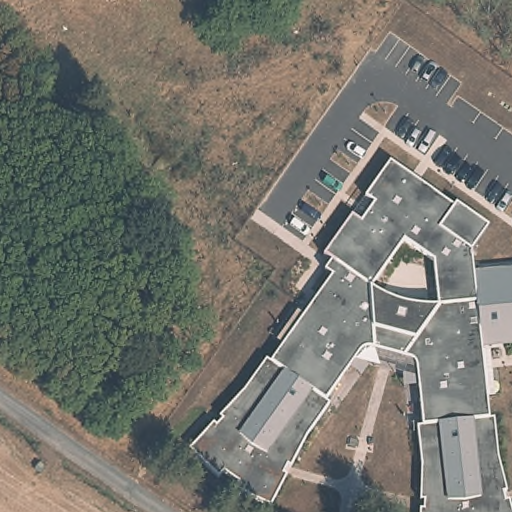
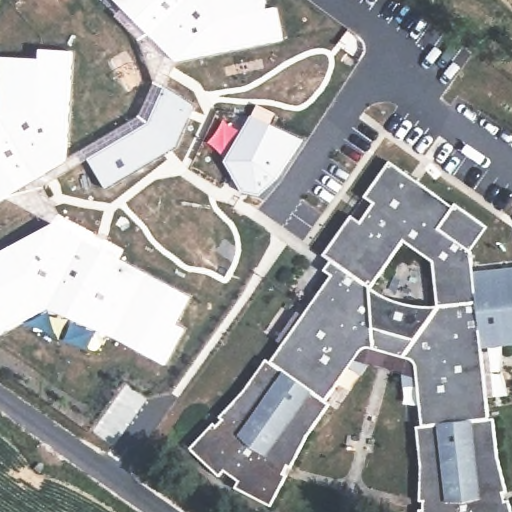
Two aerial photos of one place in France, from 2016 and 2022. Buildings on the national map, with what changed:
new [(176,61),(115,0),(266,0),(267,10),(278,8),(281,38),(176,61)]
new [(39,60),(40,49),(75,51),(66,160),(0,199),(0,57),(39,60)]
new [(90,159),(149,125),(166,86),(194,104),(177,147),(105,188),(90,159)]
new [(252,115),(304,140),(277,180),(259,197),(240,192),(224,161),(252,115)]
unchanged [(456,203),(490,227),(472,252),(474,271),(512,267),(512,346),(481,349),(488,420),(494,418),(498,456),(507,492),(504,492),(505,500),(509,499),(512,510),(512,512),(420,512),(420,511),(423,511),(423,501),(419,500),(421,461),(415,426),(422,424),(417,370),(414,361),(406,357),(375,348),(366,348),(360,352),(325,399),(330,403),(308,434),(293,466),(289,464),(283,474),(286,476),(271,505),(238,492),(239,480),(224,471),(220,475),(188,450),(212,423),(216,426),(224,420),(220,418),(243,393),(266,358),(272,362),(332,275),(325,270),(333,262),(324,256),(351,215),(361,221),(375,203),(365,197),(389,160),(454,207),(456,203)]
new [(175,326),(182,330),(165,365),(47,307),(0,333),(0,251),(54,223),(189,297),(175,326)]

